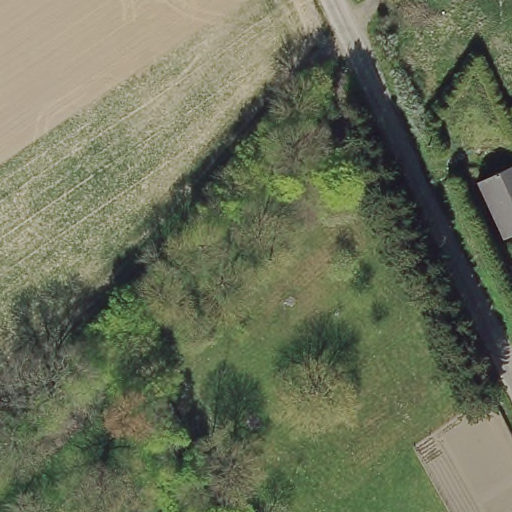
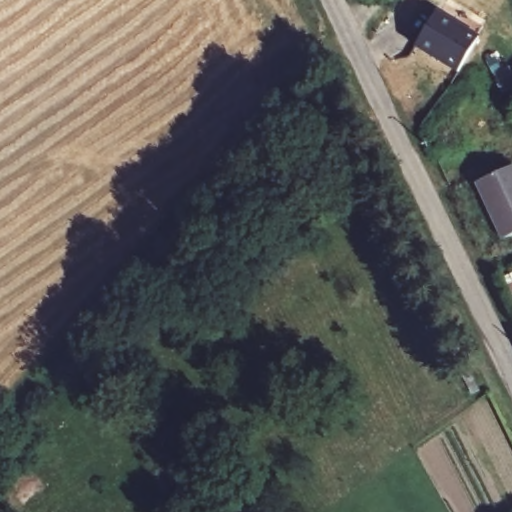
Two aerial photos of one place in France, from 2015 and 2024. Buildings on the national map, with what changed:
new [(415,46),(436,11),(478,37),(457,72),(415,46)]
unchanged [(473,183),(512,166),(512,234),(499,240),(473,183)]

